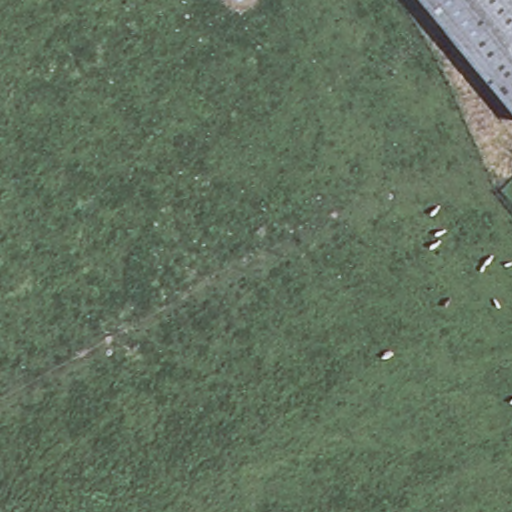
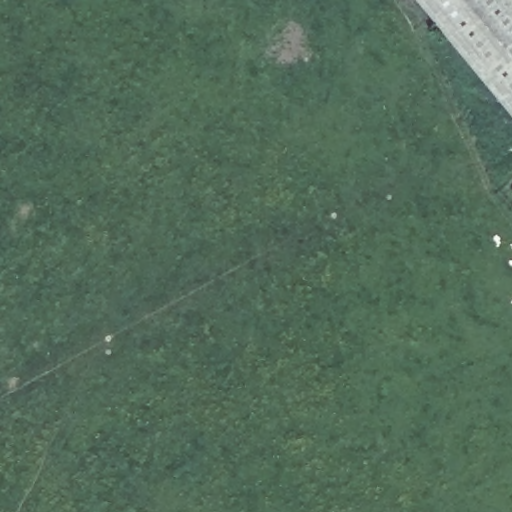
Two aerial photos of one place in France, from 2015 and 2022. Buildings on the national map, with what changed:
unchanged [(427,0),(512,0),(512,105),(427,0)]

